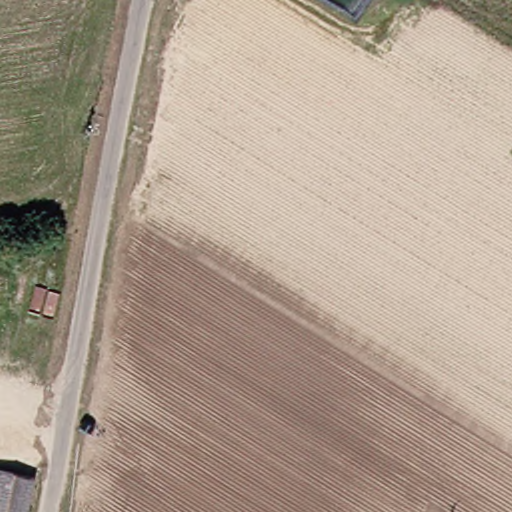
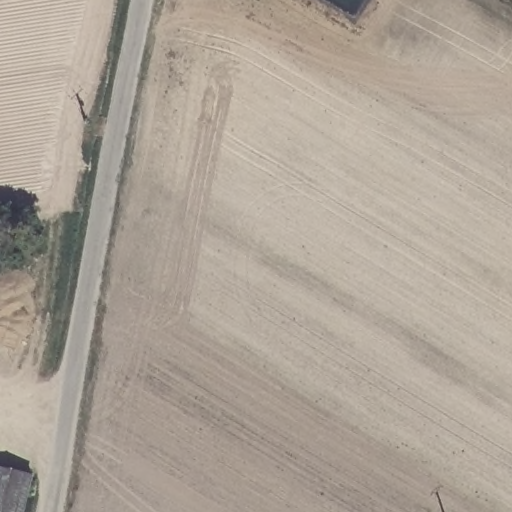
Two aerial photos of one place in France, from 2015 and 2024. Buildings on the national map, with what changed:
unchanged [(26,512),(0,512),(0,463),(26,462),(26,512)]

